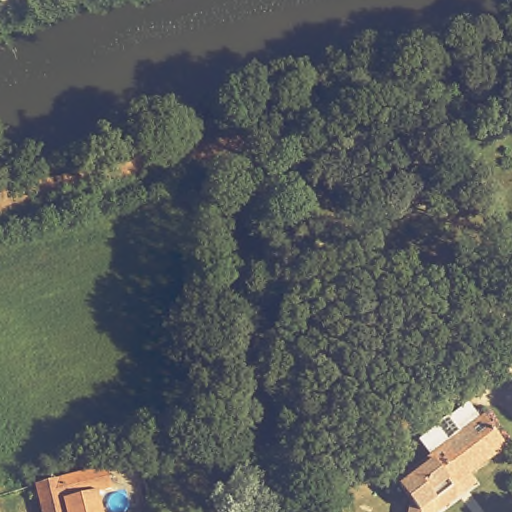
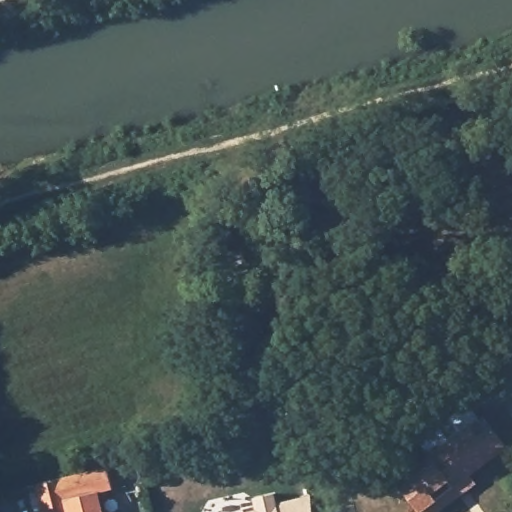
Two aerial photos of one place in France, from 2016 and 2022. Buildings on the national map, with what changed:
unchanged [(475,431),(478,428),(502,458),(447,501),(445,512),(421,512),(422,498),(410,479),(426,468),(412,452),(462,414),(475,431)]
unchanged [(96,478),(102,498),(67,508),(69,512),(40,512),(35,496),(49,492),(96,478)]
new [(255,509),(253,499),(276,493),(277,503),(311,495),(312,512),(243,512),(255,509)]

